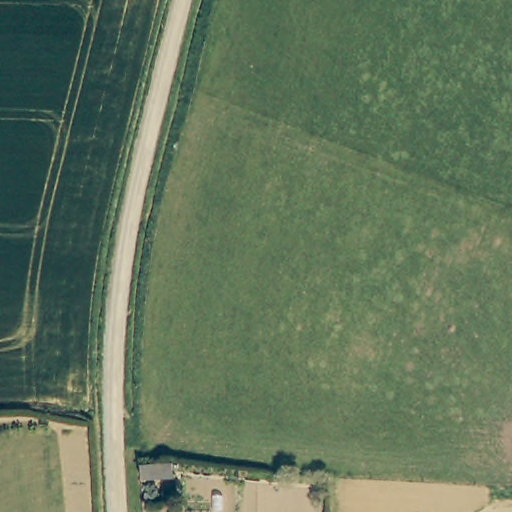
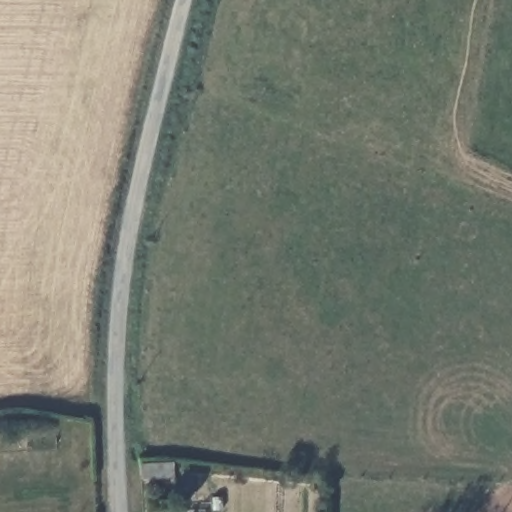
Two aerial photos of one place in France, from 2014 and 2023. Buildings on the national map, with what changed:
unchanged [(177,464),(178,464),(178,483),(140,484),(139,464),(177,464)]

